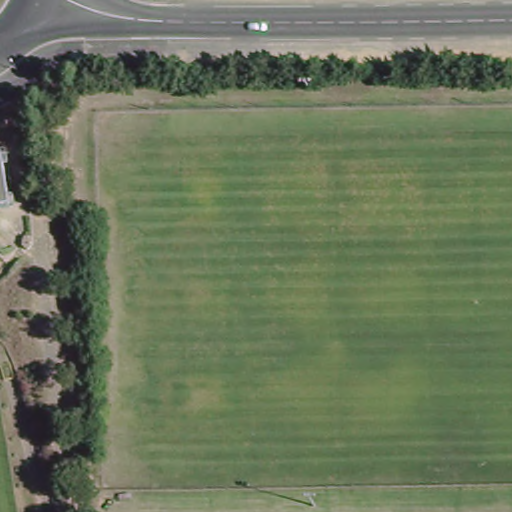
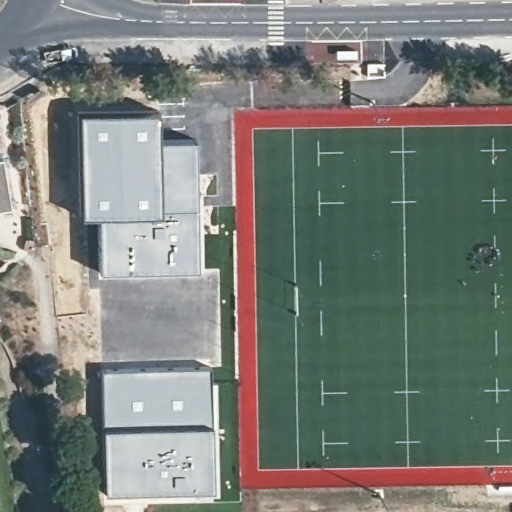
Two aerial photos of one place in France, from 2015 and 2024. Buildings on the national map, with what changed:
new [(158,110),(159,138),(196,137),(200,271),(158,273),(99,273),(97,216),(80,216),(78,112),(158,110)]
unchanged [(5,207),(0,207),(0,177),(5,207)]
new [(209,367),(215,452),(216,492),(103,493),(100,368),(209,367)]

